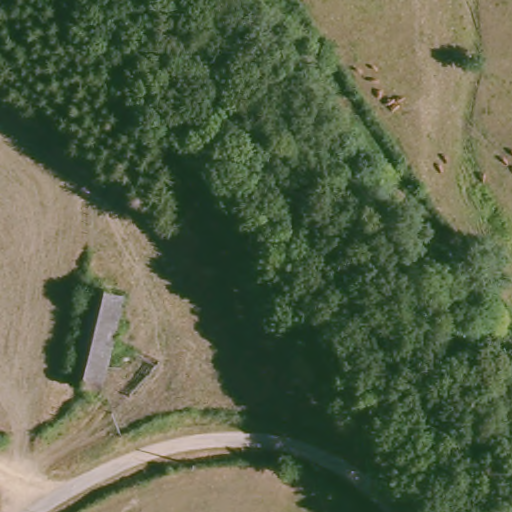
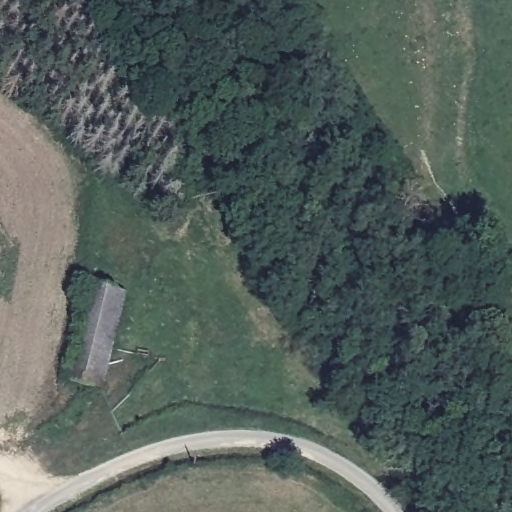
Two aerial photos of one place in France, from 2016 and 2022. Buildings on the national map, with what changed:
unchanged [(84,293),(120,302),(97,395),(60,387),(84,293)]

